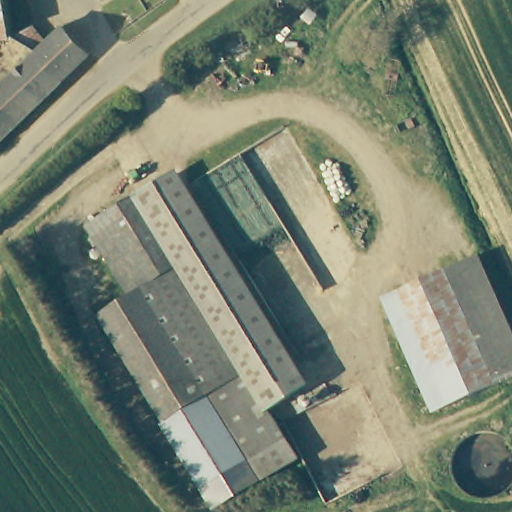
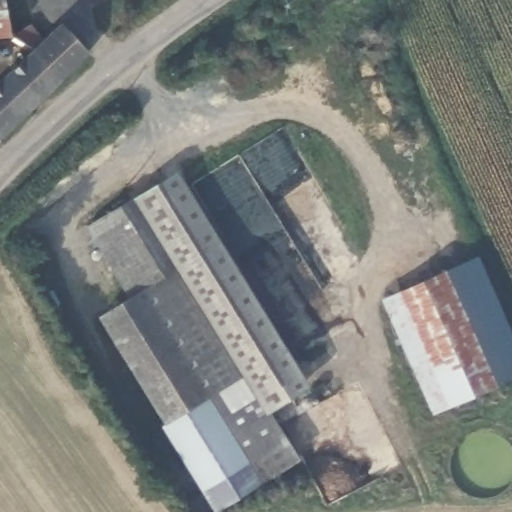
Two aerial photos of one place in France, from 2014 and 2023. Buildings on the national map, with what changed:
unchanged [(0,38),(0,0),(5,0),(11,37),(0,38)]
unchanged [(31,54),(60,25),(89,54),(61,80),(31,54)]
unchanged [(31,54),(61,80),(0,138),(0,85),(31,54)]
unchanged [(313,387),(298,396),(165,183),(180,174),(313,387)]
unchanged [(273,412),(302,458),(218,512),(100,323),(130,305),(85,234),(165,183),(298,396),(273,412)]
unchanged [(512,405),(468,427),(391,273),(468,235),(512,329),(512,405)]
unchanged [(468,427),(451,436),(375,281),(391,273),(468,427)]

